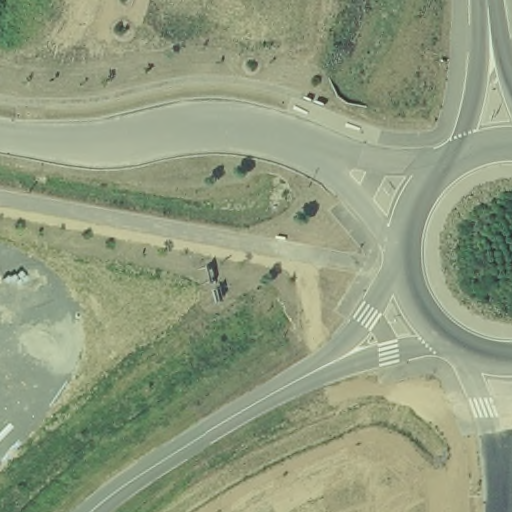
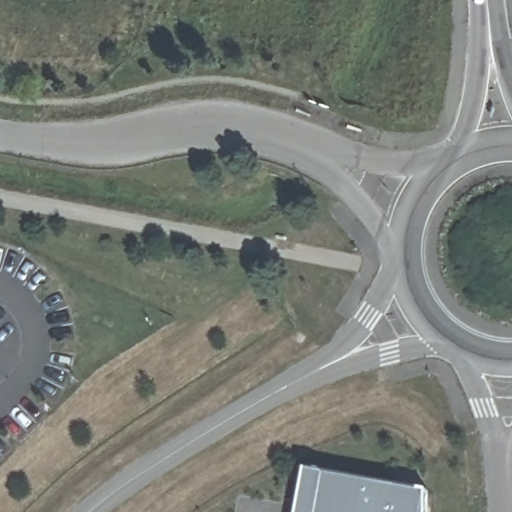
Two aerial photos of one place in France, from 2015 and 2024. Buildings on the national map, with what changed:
new [(442,499),(441,512),(308,512),(315,475),(442,499)]

